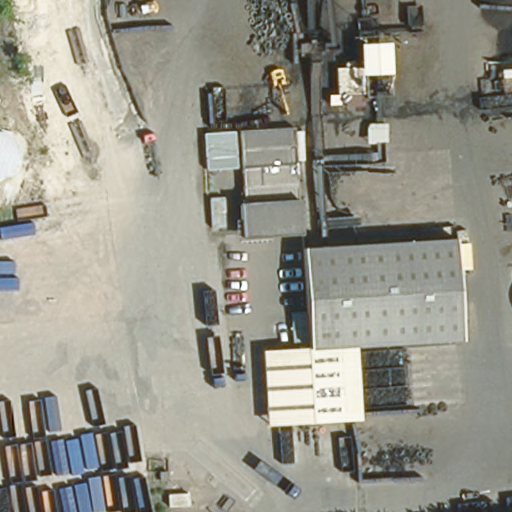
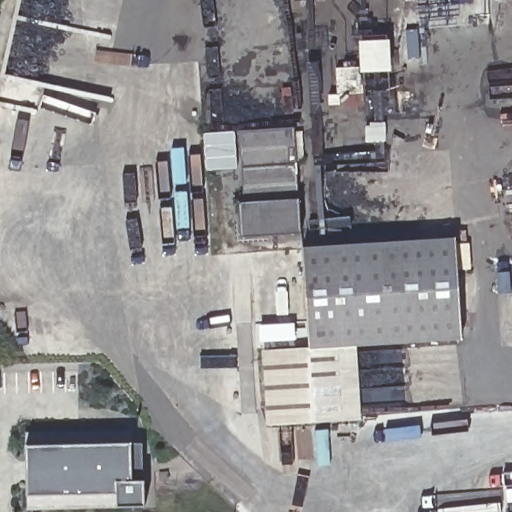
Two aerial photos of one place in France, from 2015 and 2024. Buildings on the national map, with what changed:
new [(336,95),(336,67),(359,67),(359,41),(390,41),(390,72),(359,72),(359,85),(363,85),(363,106),(344,106),(344,95),(336,95)]
unchanged [(303,235),(243,239),(241,202),(247,202),(244,133),(298,130),(303,235)]
unchanged [(357,353),(307,356),(307,347),(302,257),(454,246),(461,347),(357,353)]
unchanged [(307,356),(357,353),(362,420),(267,427),(263,350),(307,347),(307,356)]
new [(25,431),(140,429),(142,480),(130,480),(128,444),(25,446),(25,431)]
new [(25,446),(128,444),(130,480),(142,480),(144,506),(115,507),(115,493),(27,495),(25,446)]
new [(27,495),(115,493),(115,507),(27,508),(27,495)]

